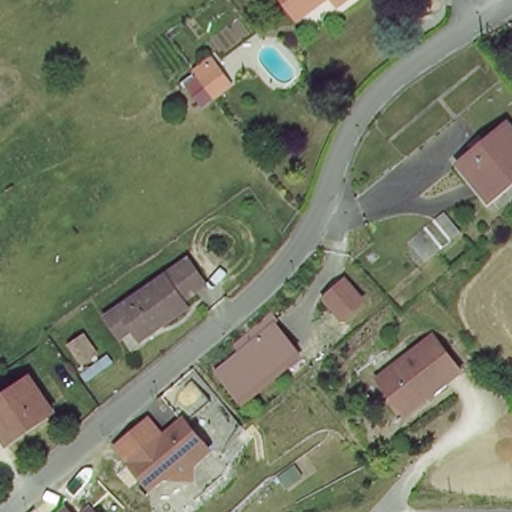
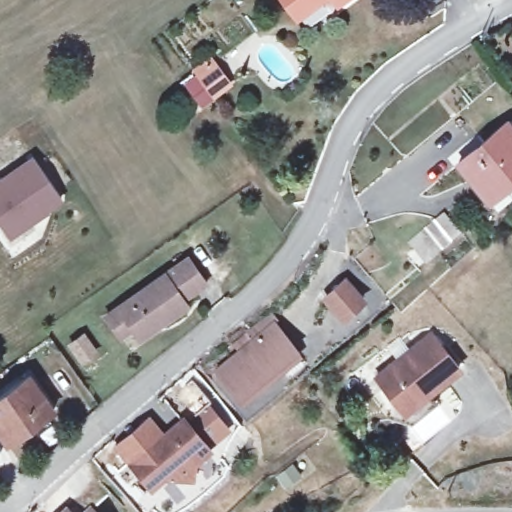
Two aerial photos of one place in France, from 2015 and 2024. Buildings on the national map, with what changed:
unchanged [(284,0),(318,0),(295,16),(284,0)]
unchanged [(334,0),(349,0),(339,7),(334,0)]
unchanged [(206,58),(223,83),(206,95),(189,69),(206,58)]
unchanged [(511,121),(512,123),(512,177),(488,196),(460,161),(511,121)]
new [(60,198),(29,221),(16,218),(2,228),(0,225),(0,181),(34,158),(60,198)]
unchanged [(442,216),(456,235),(417,265),(403,244),(442,216)]
unchanged [(104,313),(117,304),(186,255),(202,281),(180,296),(186,303),(139,336),(133,327),(120,336),(104,313)]
unchanged [(97,346),(76,362),(64,341),(83,325),(97,346)]
unchanged [(275,329),(297,355),(237,403),(217,378),(275,329)]
unchanged [(397,412),(372,382),(426,337),(454,371),(425,395),(400,416),(397,412)]
unchanged [(55,412),(39,424),(33,417),(0,438),(0,393),(29,374),(55,412)]
unchanged [(183,414),(208,445),(192,457),(191,474),(173,473),(168,467),(150,482),(130,458),(183,414)]
unchanged [(104,492),(121,509),(118,512),(81,512),(104,492)]

